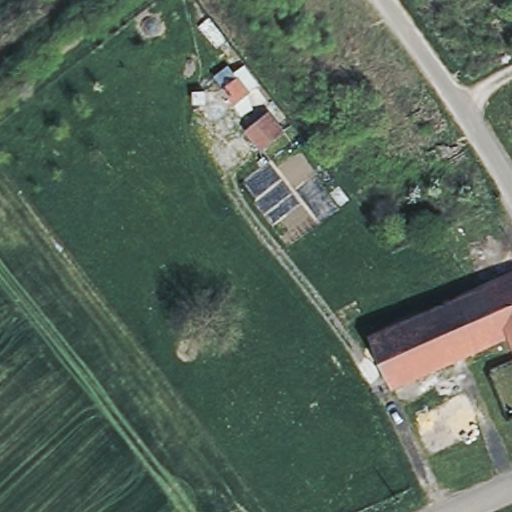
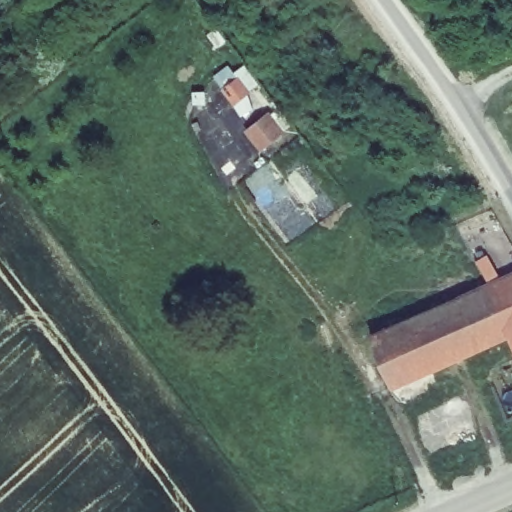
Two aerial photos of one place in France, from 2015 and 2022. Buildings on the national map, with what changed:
unchanged [(370,339),(490,287),(492,286),(512,277),(512,339),(510,334),(435,367),(392,387),(370,339)]

